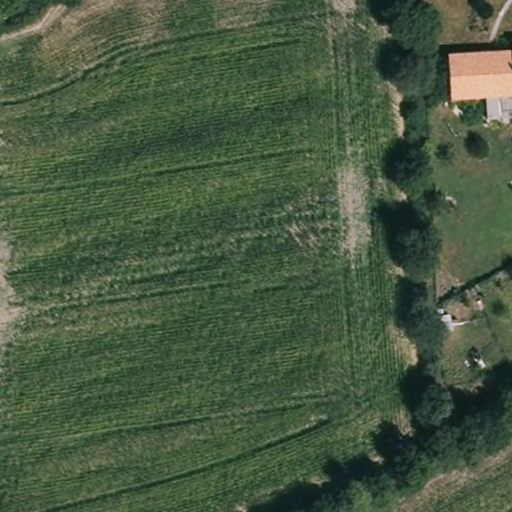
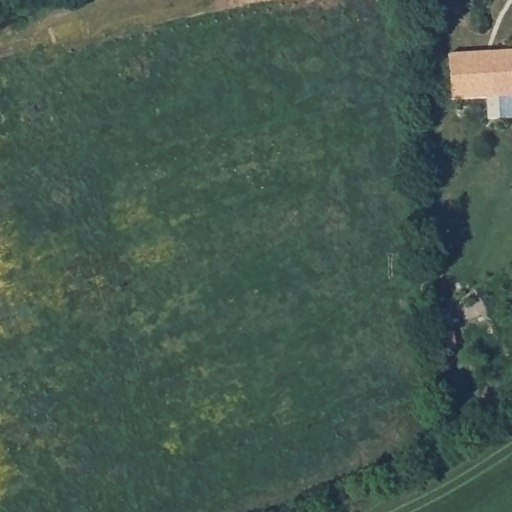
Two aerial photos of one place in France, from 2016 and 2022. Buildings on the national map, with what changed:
unchanged [(454,48),(512,44),(512,89),(457,92),(454,48)]

